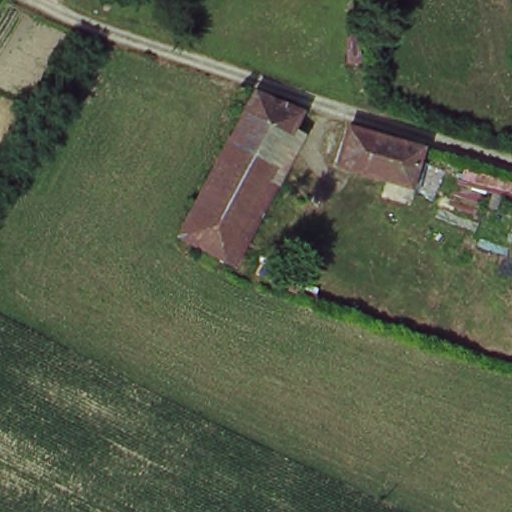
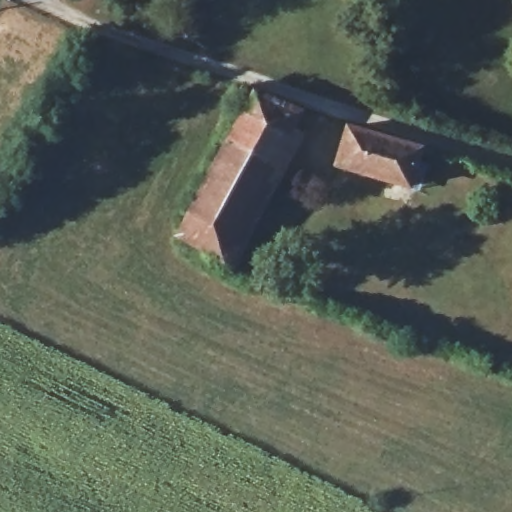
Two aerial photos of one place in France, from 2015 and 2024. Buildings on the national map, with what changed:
unchanged [(227,145),(252,99),(296,121),(273,167),(227,145)]
unchanged [(339,164),(350,127),(423,150),(412,186),(339,164)]
unchanged [(223,262),(177,240),(227,145),(273,167),(223,262)]

